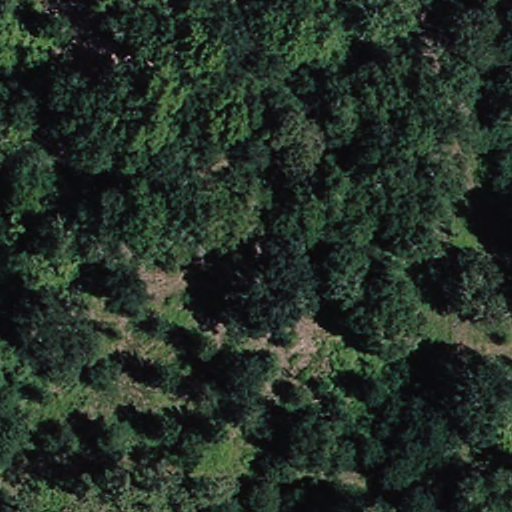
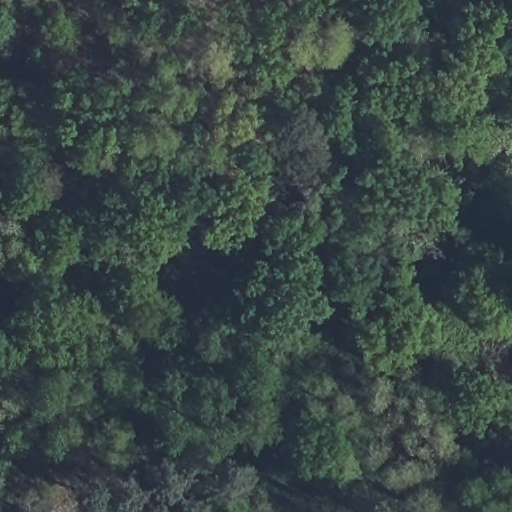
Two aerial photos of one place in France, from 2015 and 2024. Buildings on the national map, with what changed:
unchanged [(496,175),(512,174),(512,207),(499,207),(496,175)]

